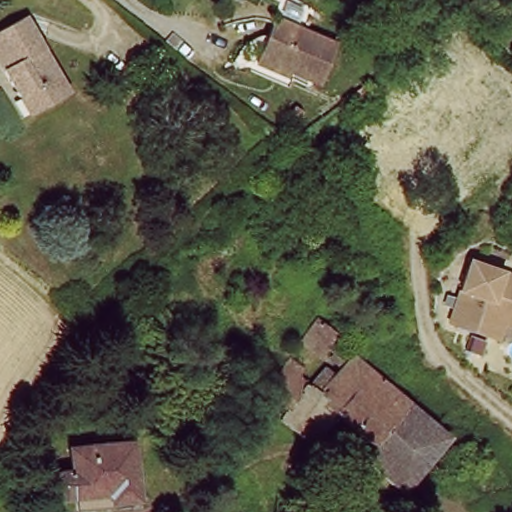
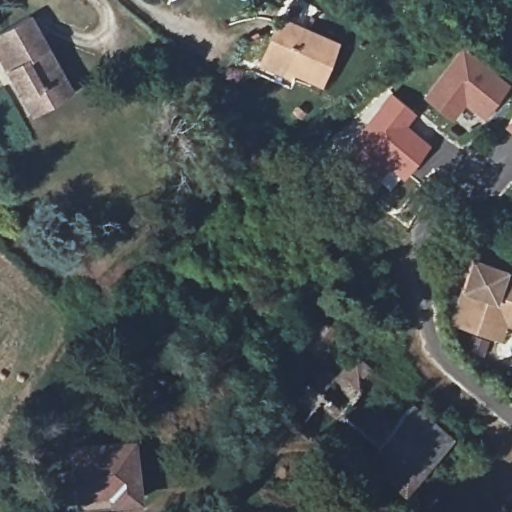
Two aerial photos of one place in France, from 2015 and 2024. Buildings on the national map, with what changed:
unchanged [(293,69),(290,76),(257,64),(277,16),(337,39),(321,80),(293,69)]
unchanged [(11,68),(0,48),(0,37),(8,33),(37,18),(76,94),(50,108),(36,116),(28,100),(11,68)]
new [(467,49),(510,84),(473,130),(430,95),(467,49)]
unchanged [(346,95),(372,78),(378,87),(352,104),(346,95)]
new [(402,183),(351,141),(390,93),(417,115),(409,125),(431,144),(402,183)]
new [(512,122),(512,125),(510,123),(512,122)]
unchanged [(504,324),(498,340),(489,337),(451,323),(473,262),(512,276),(512,327),(504,324)]
unchanged [(307,338),(326,316),(344,332),(324,354),(307,338)]
unchanged [(364,355),(417,401),(399,420),(343,375),(364,355)]
unchanged [(259,398),(289,364),(324,393),(343,408),(317,437),(259,398)]
unchanged [(456,433),(409,489),(375,462),(382,441),(343,408),(324,393),(343,375),(399,420),(417,401),(456,433)]
unchanged [(60,487),(59,470),(67,466),(78,464),(76,442),(138,437),(144,491),(81,498),(81,489),(67,490),(60,487)]
unchanged [(365,498),(374,487),(391,501),(382,511),(365,498)]

